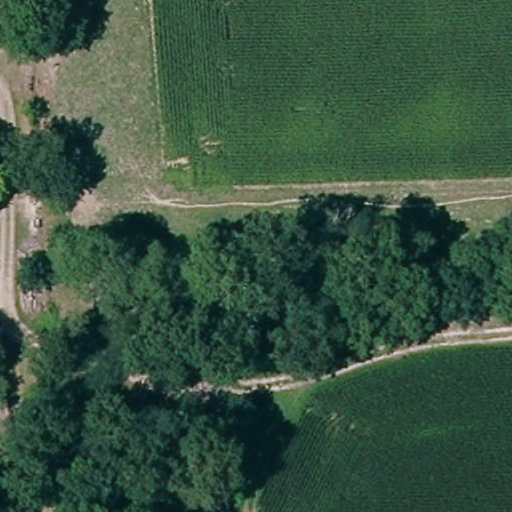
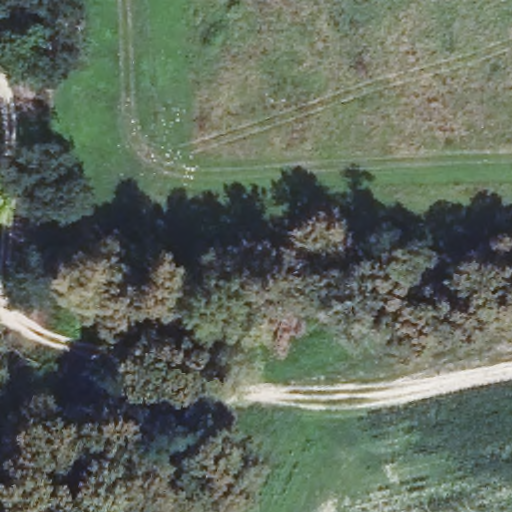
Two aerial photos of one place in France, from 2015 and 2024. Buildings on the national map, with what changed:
[]

